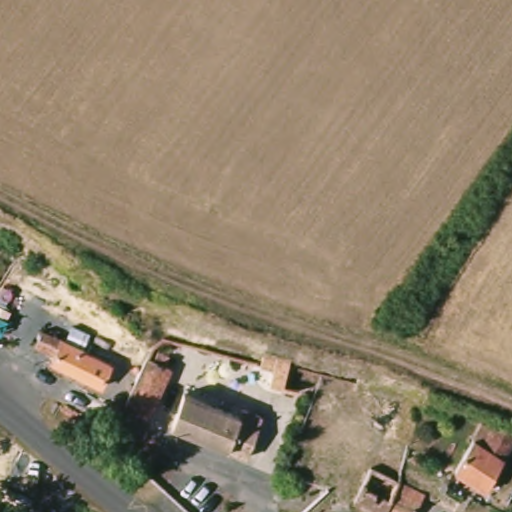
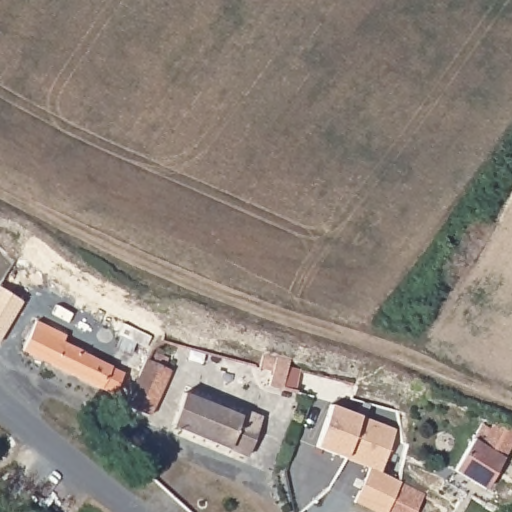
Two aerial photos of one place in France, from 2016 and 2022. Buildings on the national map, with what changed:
unchanged [(26,308),(4,348),(0,347),(0,317),(5,307),(14,310),(16,303),(26,308)]
unchanged [(61,337),(43,328),(52,309),(70,317),(61,337)]
unchanged [(95,358),(119,371),(105,395),(58,371),(61,363),(42,352),(50,337),(96,357),(95,358)]
unchanged [(171,389),(158,413),(136,402),(150,378),(171,389)]
unchanged [(181,398),(235,419),(237,413),(259,422),(244,462),(166,430),(181,398)]
new [(362,416),(397,430),(382,472),(402,482),(424,493),(416,512),(376,512),(354,502),(370,468),(347,458),(316,448),(333,406),(362,416)]
unchanged [(483,491),(452,472),(480,430),(487,434),(494,425),(512,432),(512,446),(483,491)]
demolished [(351,507),(366,472),(395,485),(384,512),(361,512),(351,507)]
demolished [(395,485),(423,496),(415,512),(384,512),(395,485)]

